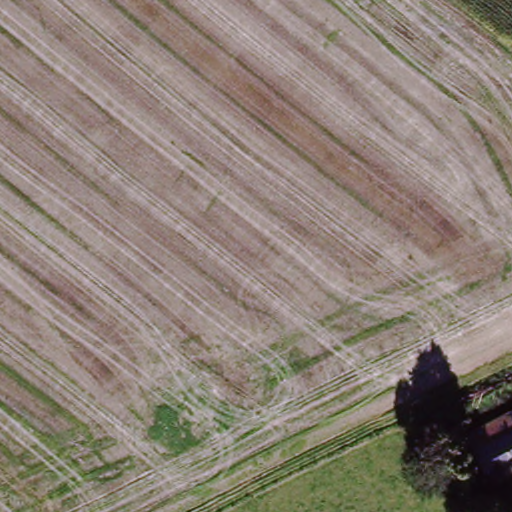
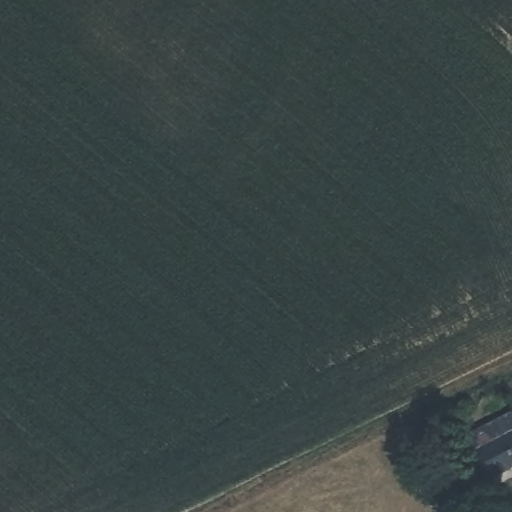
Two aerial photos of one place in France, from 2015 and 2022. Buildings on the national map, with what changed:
unchanged [(504,419),(512,416),(512,465),(482,479),(471,451),(511,433),(504,419)]

